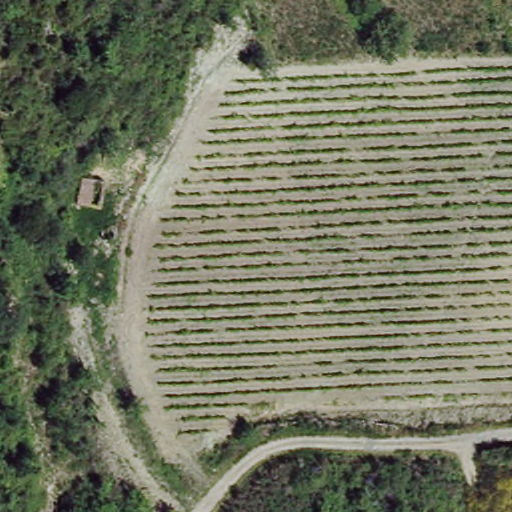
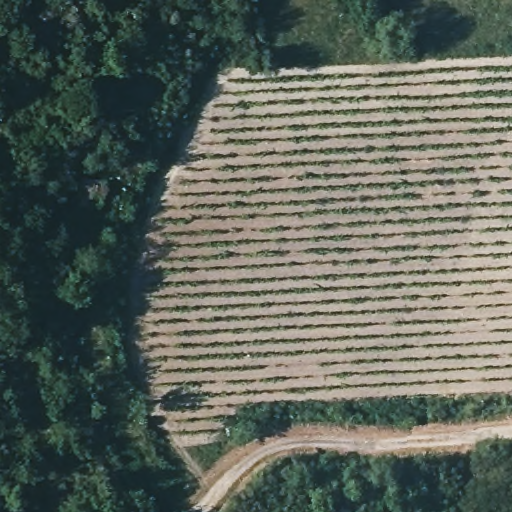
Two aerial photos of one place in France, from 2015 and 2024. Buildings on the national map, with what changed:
unchanged [(106,196),(95,218),(74,208),(86,186),(106,196)]

